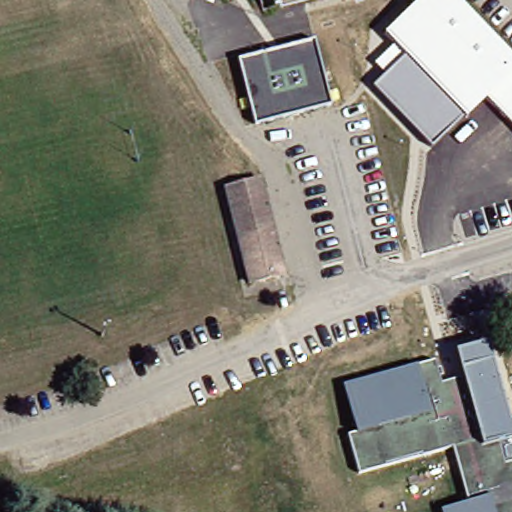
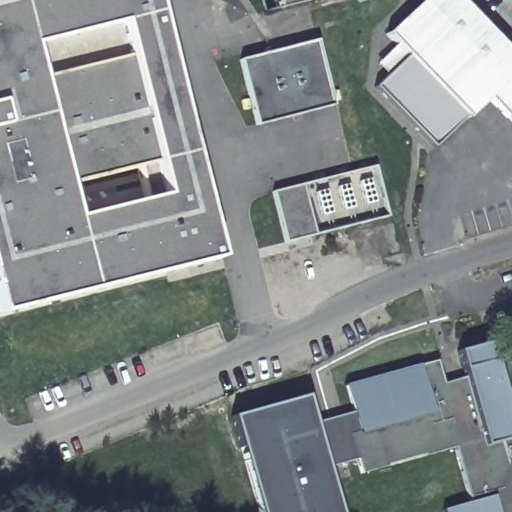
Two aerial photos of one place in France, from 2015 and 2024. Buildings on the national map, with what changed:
new [(0,321),(0,0),(153,0),(222,266),(0,321)]
unchanged [(285,0),(271,4),(271,0),(285,0)]
unchanged [(512,122),(488,97),(467,118),(464,115),(432,145),(375,87),(406,54),(386,33),(422,0),(457,0),(512,58),(512,122)]
unchanged [(315,43),(331,108),(255,125),(240,61),(315,43)]
demolished [(457,192),(512,178),(512,224),(469,235),(465,222),(457,192)]
demolished [(275,275),(240,284),(216,189),(250,180),(275,275)]
new [(313,234),(286,241),(273,193),(300,185),(313,234)]
demolished [(453,450),(360,476),(348,436),(358,434),(343,385),(438,361),(445,384),(466,379),(457,351),(491,342),(512,415),(512,438),(502,441),(508,465),(512,464),(512,512),(441,512),(441,511),(469,502),(453,450)]
new [(465,506),(450,451),(356,477),(352,462),(315,472),(326,512),(246,512),(222,423),(298,401),(304,427),(348,415),(340,388),(432,363),(438,384),(456,380),(450,357),(482,349),(505,428),(512,426),(512,512),(442,512),(465,506)]

